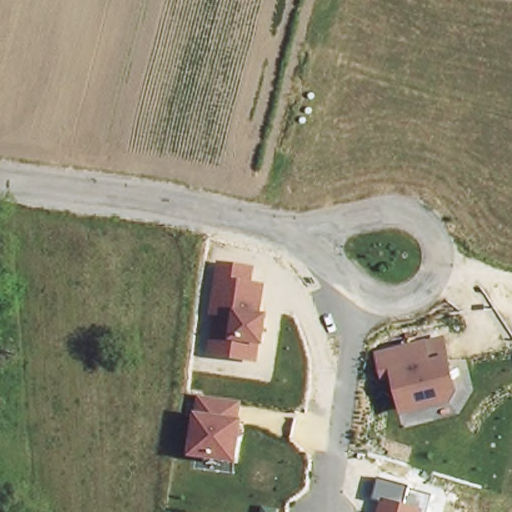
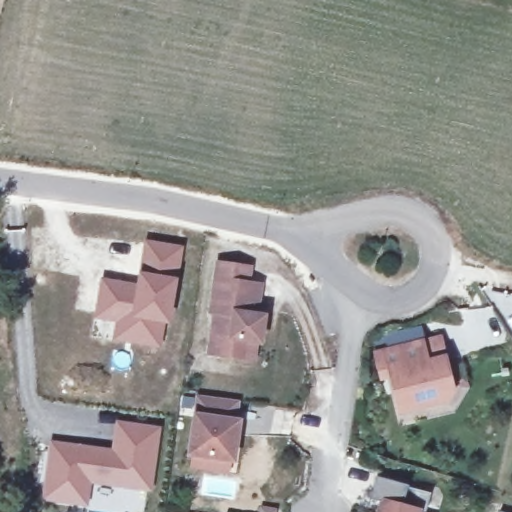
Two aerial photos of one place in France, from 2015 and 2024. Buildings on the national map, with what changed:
new [(137,284),(145,239),(184,247),(172,324),(165,323),(161,349),(112,341),(114,323),(94,319),(102,277),(137,284)]
unchanged [(263,346),(258,345),(256,363),(205,356),(211,314),(208,314),(217,262),(253,266),(251,284),(262,285),(259,311),(266,313),(263,346)]
unchanged [(457,390),(449,404),(400,417),(390,378),(380,381),(371,349),(440,333),(457,390)]
unchanged [(239,419),(241,420),(238,463),(188,458),(192,418),(195,395),(240,399),(239,419)]
new [(113,448),(116,420),(161,425),(154,492),(92,484),(89,507),(40,502),(51,440),(113,448)]
unchanged [(407,485),(403,505),(422,509),(421,512),(378,512),(380,501),(372,499),(377,477),(407,485)]

